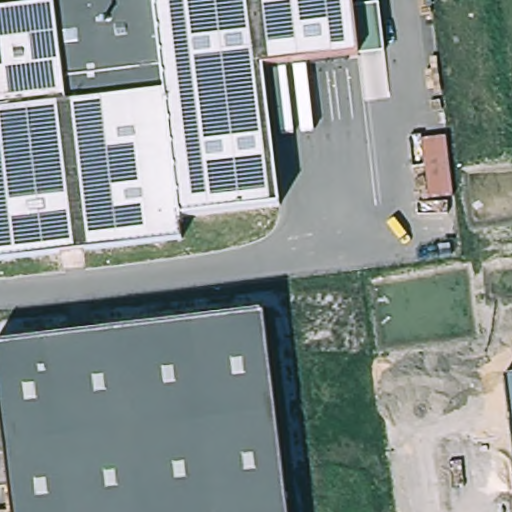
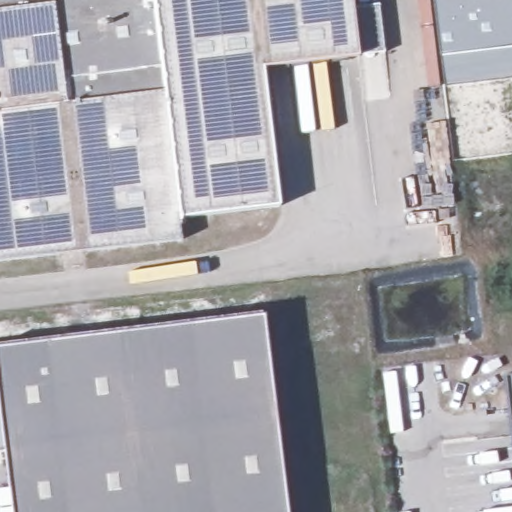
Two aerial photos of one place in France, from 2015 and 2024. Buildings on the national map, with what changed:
unchanged [(177,205),(179,221),(181,238),(82,250),(59,254),(0,261),(0,0),(150,0),(177,205)]
unchanged [(350,13),(375,10),(381,57),(262,72),(278,209),(179,221),(177,205),(150,0),(348,0),(350,13)]
new [(434,0),(512,0),(512,78),(445,86),(434,0)]
unchanged [(70,340),(92,337),(262,316),(286,512),(9,512),(0,441),(0,348),(70,340)]
unchanged [(507,377),(512,377),(512,422),(507,377)]
new [(1,450),(0,450),(0,442),(1,450)]

